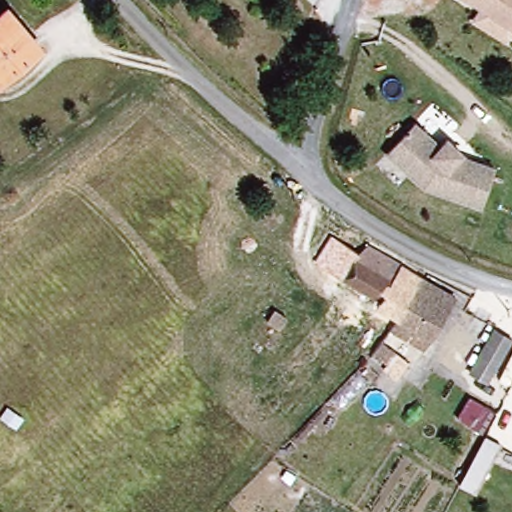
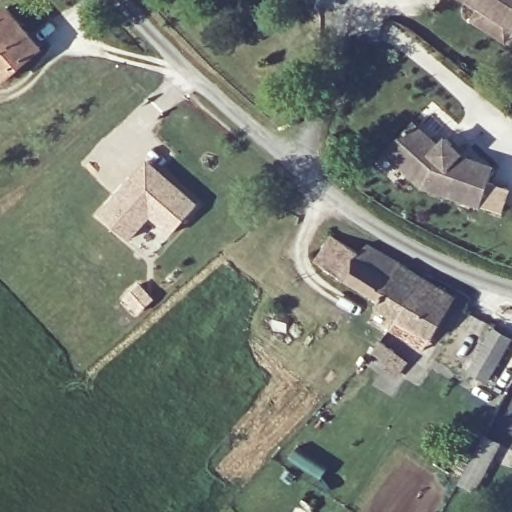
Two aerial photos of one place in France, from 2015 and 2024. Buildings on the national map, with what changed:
unchanged [(512,0),(512,29),(482,11),(465,0),(512,0)]
unchanged [(41,48),(0,80),(0,11),(7,5),(41,48)]
unchanged [(451,161),(485,174),(472,210),(417,193),(378,158),(405,128),(431,152),(438,145),(453,159),(451,161)]
new [(100,213),(147,159),(197,204),(172,235),(151,216),(129,240),(100,213)]
unchanged [(372,312),(377,305),(313,265),(327,244),(354,261),(362,250),(413,280),(390,322),(372,312)]
unchanged [(390,322),(413,280),(451,299),(428,343),(390,322)]
unchanged [(495,326),(512,335),(512,342),(489,382),(469,370),(495,326)]
unchanged [(459,484),(486,432),(503,441),(477,492),(459,484)]

